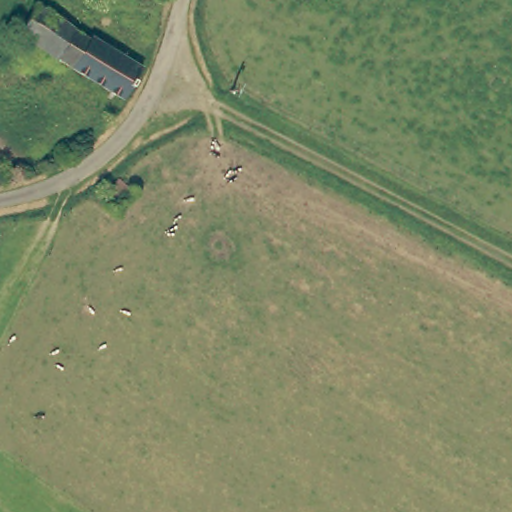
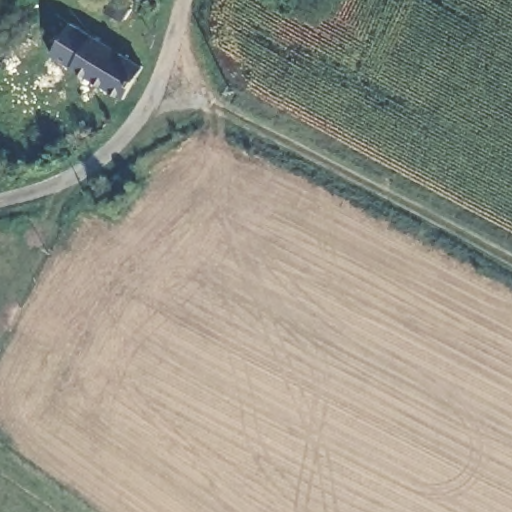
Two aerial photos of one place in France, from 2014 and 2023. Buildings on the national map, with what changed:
unchanged [(106,80),(80,65),(71,77),(49,63),(44,60),(71,19),(95,34),(97,30),(99,31),(139,58),(119,87),(106,80)]

